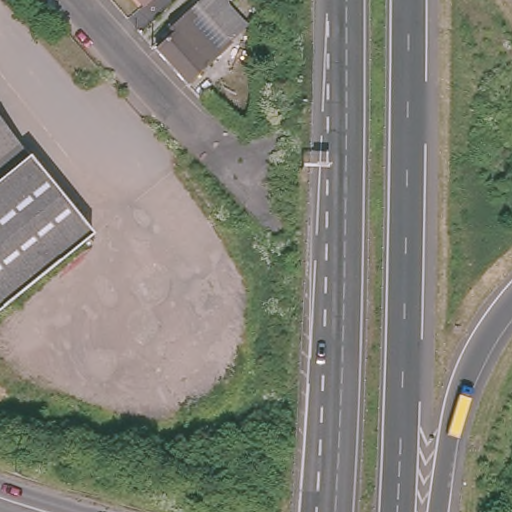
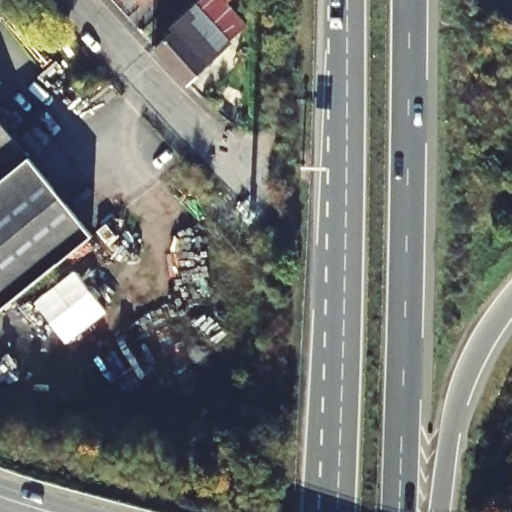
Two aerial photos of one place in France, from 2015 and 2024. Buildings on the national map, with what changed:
unchanged [(141,0),(150,0),(146,4),(141,0)]
unchanged [(199,0),(228,0),(226,2),(246,25),(206,61),(208,64),(188,82),(155,46),(173,30),(170,26),(199,0)]
unchanged [(0,305),(0,117),(92,230),(0,305)]
new [(33,304),(74,272),(108,313),(65,344),(33,304)]

